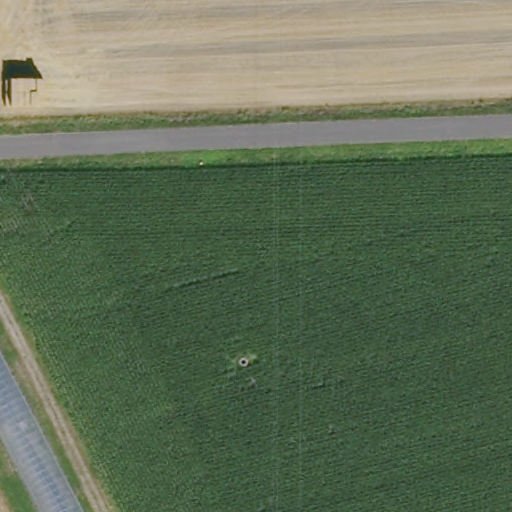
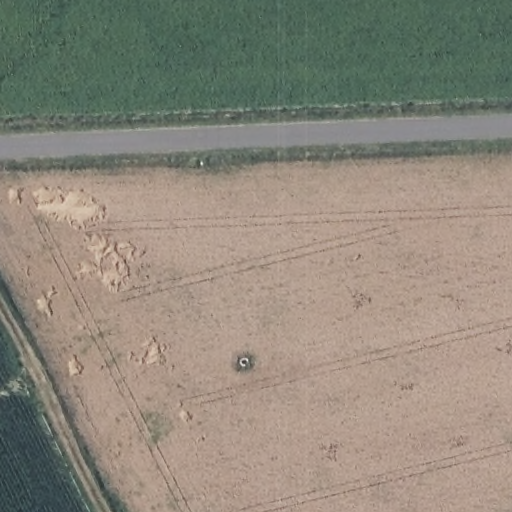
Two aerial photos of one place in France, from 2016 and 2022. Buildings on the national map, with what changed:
demolished [(0,423),(0,348),(85,512),(46,512),(0,423)]

